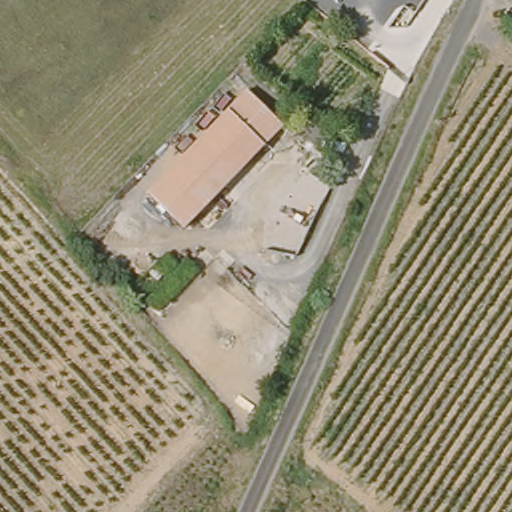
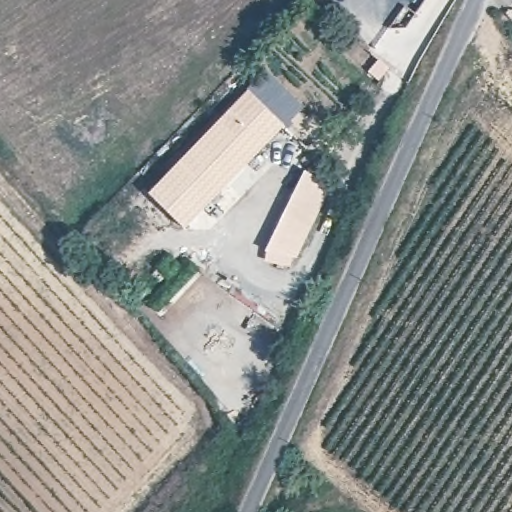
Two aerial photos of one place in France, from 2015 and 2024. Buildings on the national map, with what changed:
unchanged [(289,123),(191,227),(154,191),(252,87),(289,123)]
new [(304,170),(331,185),(297,257),(267,250),(304,170)]

